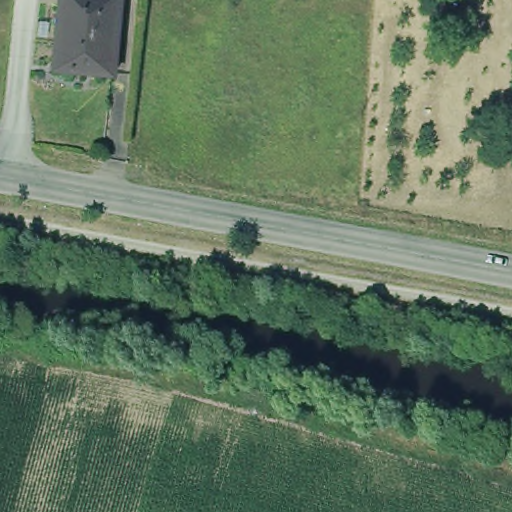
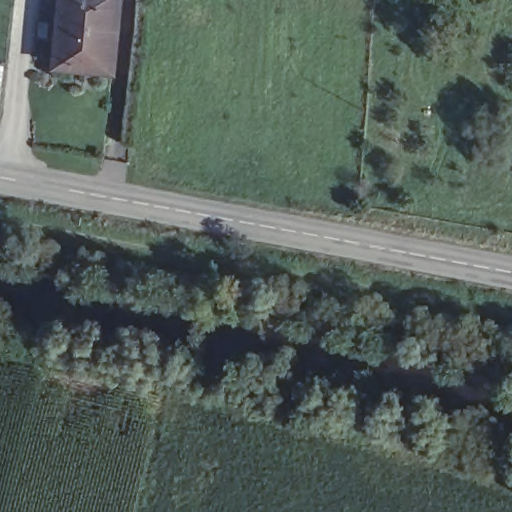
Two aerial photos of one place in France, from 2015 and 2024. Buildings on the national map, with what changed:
unchanged [(50,8),(51,0),(111,0),(105,76),(83,74),(45,71),(50,8)]

